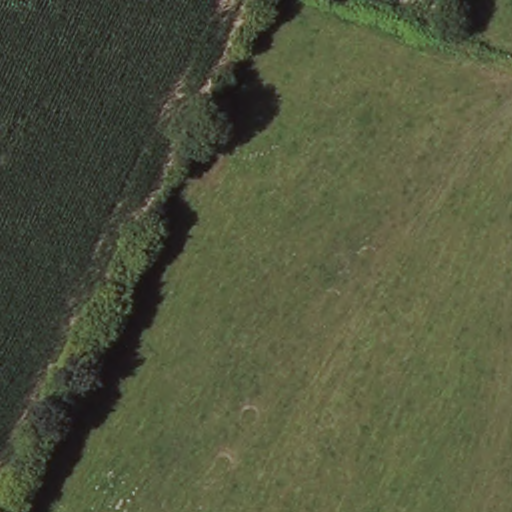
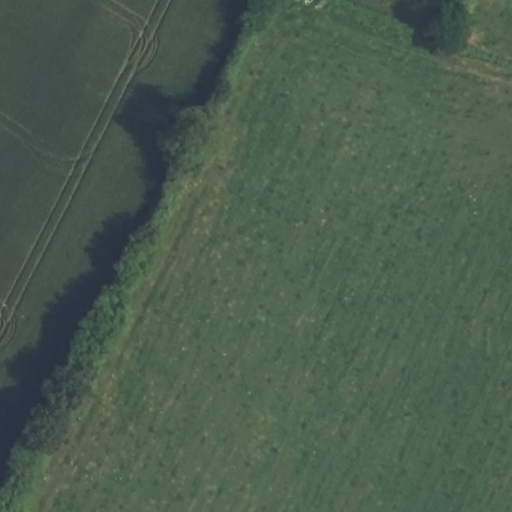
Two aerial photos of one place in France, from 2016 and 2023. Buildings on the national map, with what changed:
[]

